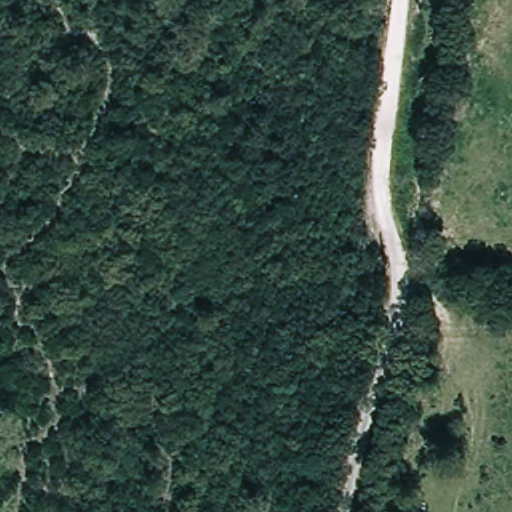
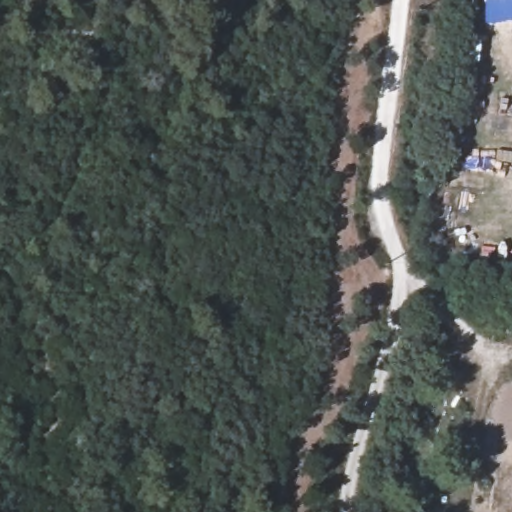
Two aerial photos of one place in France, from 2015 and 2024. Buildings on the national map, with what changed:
new [(485,23),(484,0),(512,0),(512,19),(485,23)]

